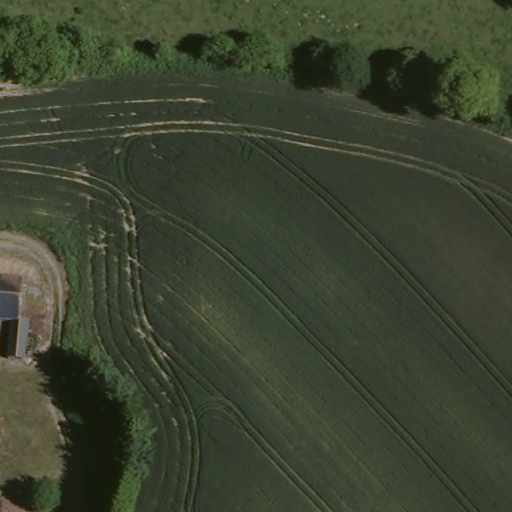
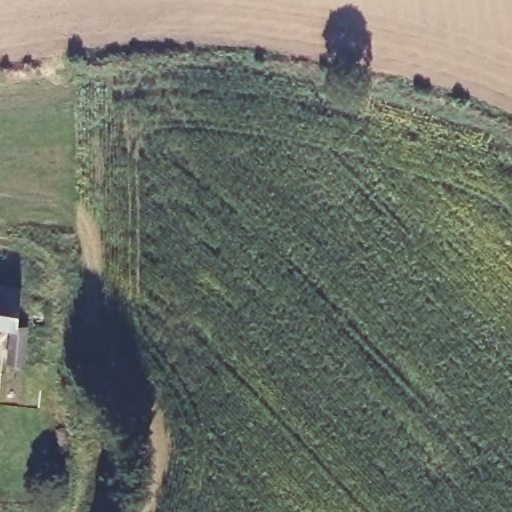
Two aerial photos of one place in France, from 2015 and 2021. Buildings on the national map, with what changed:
unchanged [(17,327),(30,329),(25,363),(3,360),(8,327),(0,326),(0,286),(22,289),(17,327)]

